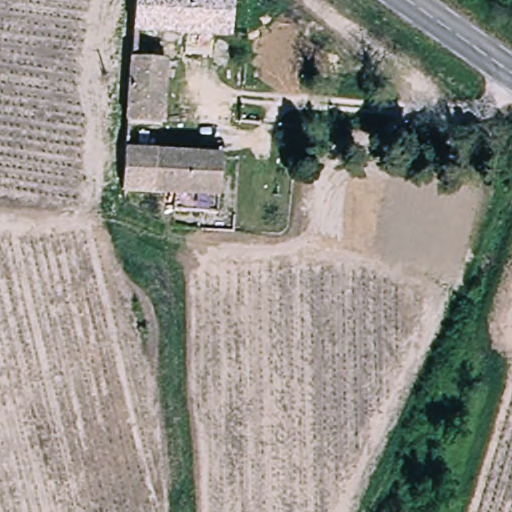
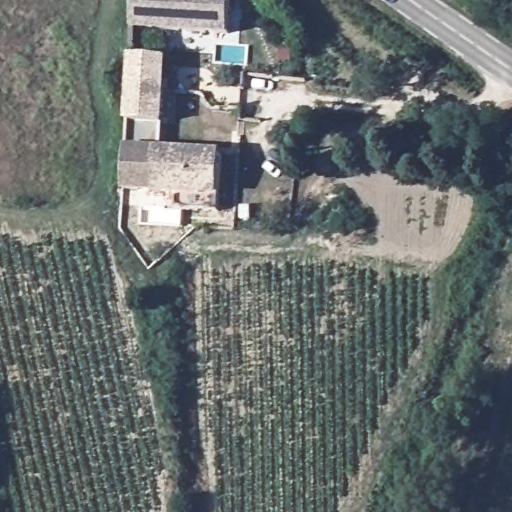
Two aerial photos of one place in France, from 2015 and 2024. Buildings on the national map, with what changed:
unchanged [(224,36),(127,29),(129,0),(227,0),(224,36)]
unchanged [(129,56),(163,59),(158,137),(158,138),(156,138),(140,137),(122,136),(129,56)]
unchanged [(140,137),(140,148),(220,154),(218,173),(236,174),(233,212),(199,212),(200,194),(171,192),(117,187),(122,136),(140,137)]
unchanged [(242,175),(236,174),(237,166),(243,166),(242,175)]

